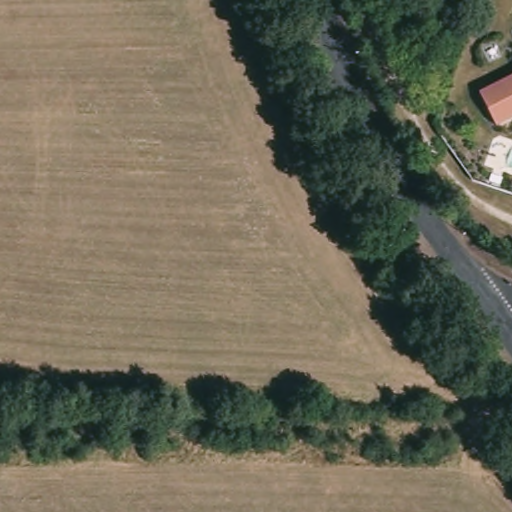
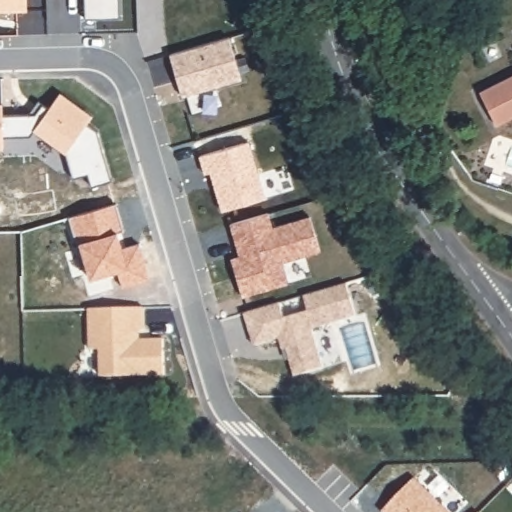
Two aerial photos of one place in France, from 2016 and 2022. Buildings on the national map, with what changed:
new [(26,10),(0,11),(0,0),(29,0),(26,10)]
new [(85,17),(84,0),(118,0),(118,17),(85,17)]
new [(241,79),(182,96),(169,59),(168,54),(228,37),(240,52),(241,79)]
unchanged [(494,132),(476,95),(512,79),(512,123),(494,132)]
new [(2,117),(29,117),(39,104),(43,107),(49,112),(60,96),(92,119),(87,126),(98,134),(112,183),(91,190),(88,178),(73,182),(65,156),(34,134),(30,139),(3,140),(3,150),(0,151),(0,107),(3,107),(2,117)]
new [(248,141),(263,197),(220,209),(209,170),(203,171),(199,154),(248,141)]
new [(237,255),(235,247),(228,222),(266,212),(271,226),(308,216),(318,251),(280,261),(286,283),(261,289),(239,295),(229,257),(230,256),(237,255)]
new [(277,302),(282,318),(306,311),(302,295),(344,284),(353,316),(309,329),(320,368),(291,375),(283,347),(279,348),(276,337),(251,344),(242,312),(277,302)]
new [(87,313),(96,313),(142,312),(142,335),(133,335),(133,344),(162,344),(162,380),(98,380),(98,353),(88,353),(88,328),(87,313)]
new [(450,512),(384,512),(383,511),(417,478),(450,512)]

